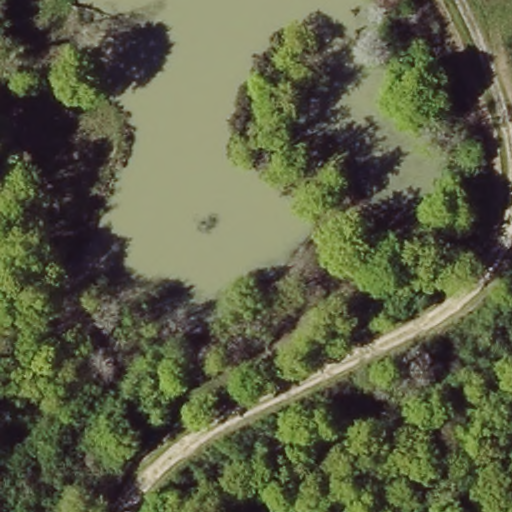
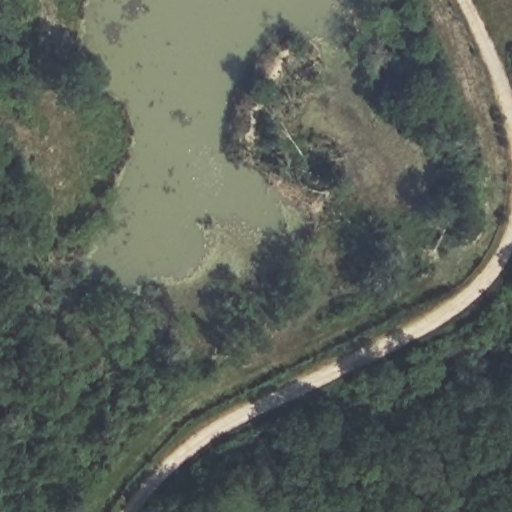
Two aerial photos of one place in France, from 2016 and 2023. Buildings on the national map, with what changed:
[]

